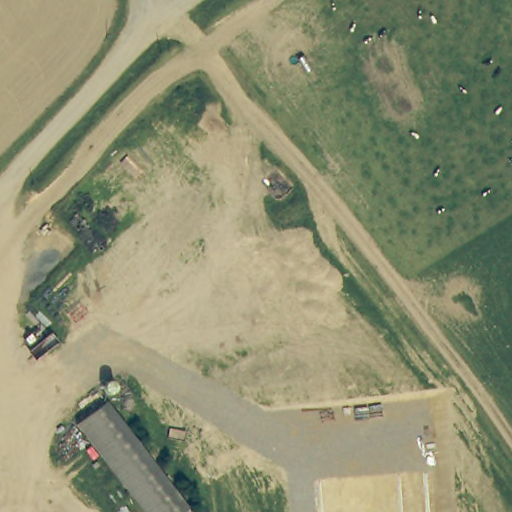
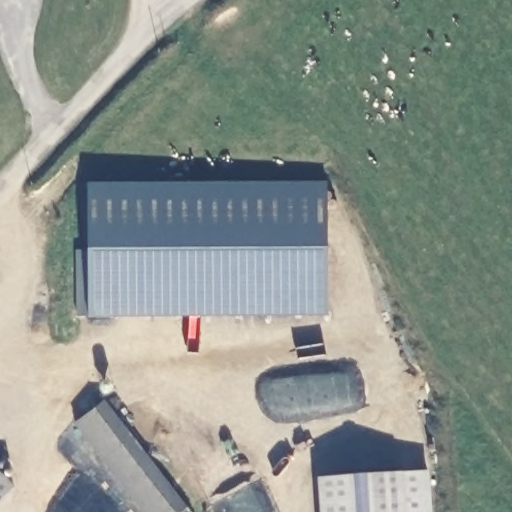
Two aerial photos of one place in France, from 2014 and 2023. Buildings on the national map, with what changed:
new [(330,316),(90,318),(88,184),(329,183),(330,316)]
unchanged [(111,400),(197,512),(148,512),(81,423),(111,400)]
new [(0,504),(0,473),(16,488),(0,504)]
new [(432,512),(321,512),(318,480),(430,473),(432,512)]

